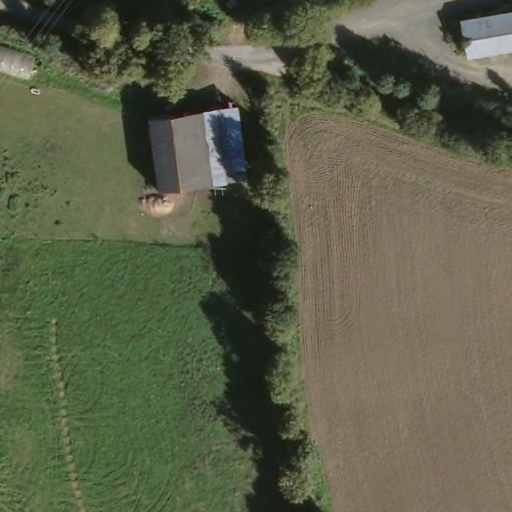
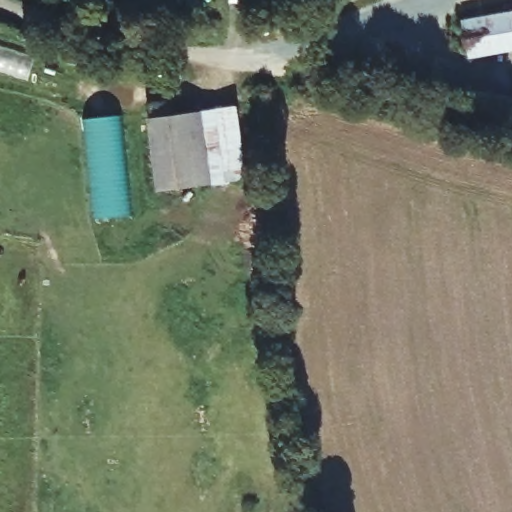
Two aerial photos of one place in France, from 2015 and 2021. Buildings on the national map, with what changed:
unchanged [(512,52),(466,59),(461,23),(512,15),(512,52)]
unchanged [(244,167),(223,170),(224,182),(158,190),(148,118),(236,107),(244,167)]
new [(85,118),(116,115),(126,216),(95,219),(85,118)]

